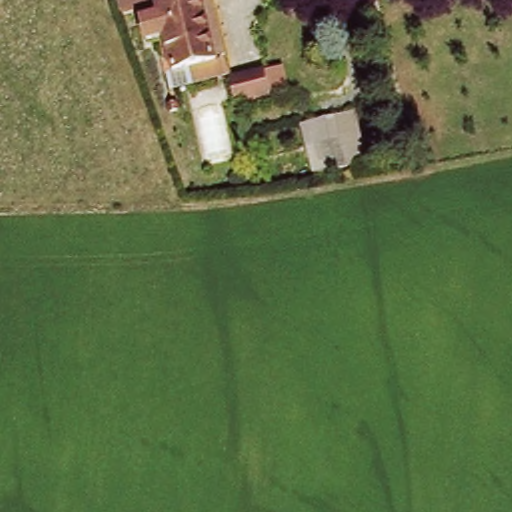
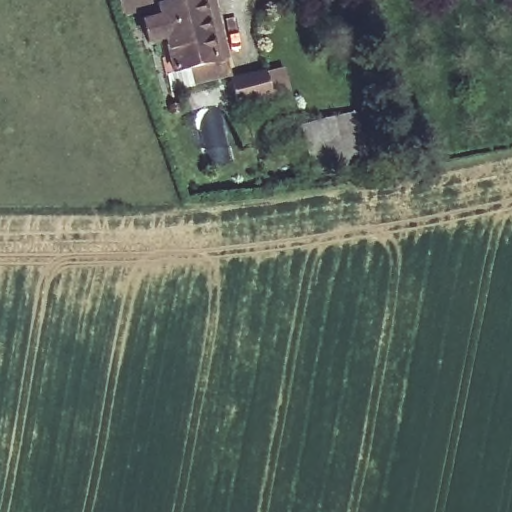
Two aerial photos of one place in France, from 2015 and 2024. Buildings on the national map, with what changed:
unchanged [(233,59),(181,72),(172,35),(152,40),(147,20),(167,16),(164,3),(132,10),(129,0),(218,0),(233,59)]
unchanged [(238,105),(232,80),(266,72),(272,96),(238,105)]
unchanged [(325,174),(313,125),(364,110),(377,160),(325,174)]

